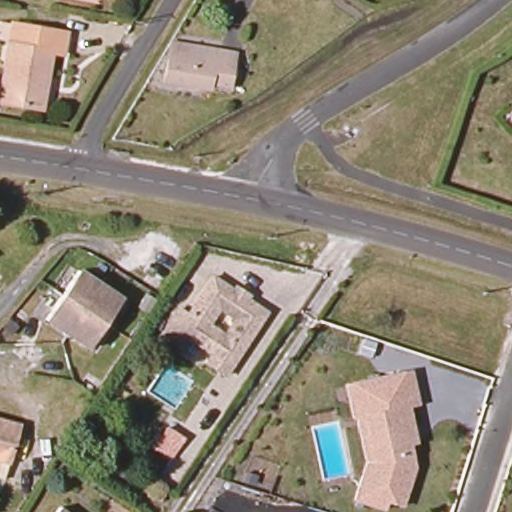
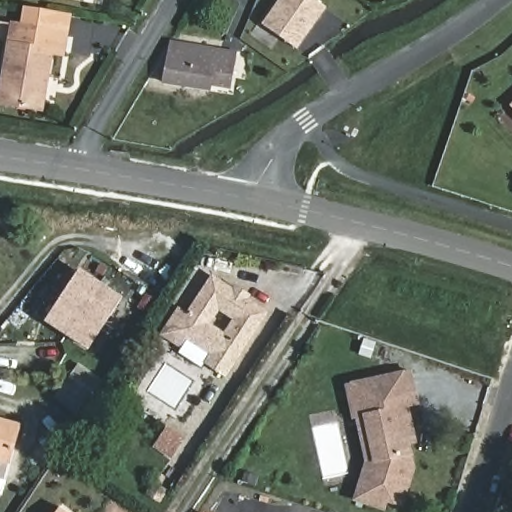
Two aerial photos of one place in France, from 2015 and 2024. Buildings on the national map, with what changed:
new [(317,0),(327,7),(298,48),(266,25),(284,0),(317,0)]
unchanged [(56,54),(44,52),(35,109),(0,104),(0,55),(2,44),(7,45),(10,24),(60,33),(56,54)]
unchanged [(232,57),(226,92),(206,89),(205,93),(162,87),(170,47),(232,57)]
unchanged [(508,106),(512,102),(512,110),(508,106)]
unchanged [(115,298),(82,348),(39,319),(71,270),(115,298)]
unchanged [(181,309),(190,315),(215,277),(269,313),(227,376),(209,363),(165,333),(181,309)]
unchanged [(406,436),(410,471),(399,506),(385,501),(381,509),(352,500),(359,477),(364,461),(358,416),(355,417),(350,383),(365,381),(414,374),(418,408),(409,409),(412,435),(406,436)]
unchanged [(0,460),(0,420),(20,425),(10,462),(0,460)]
new [(170,423),(187,434),(167,467),(150,456),(170,423)]

